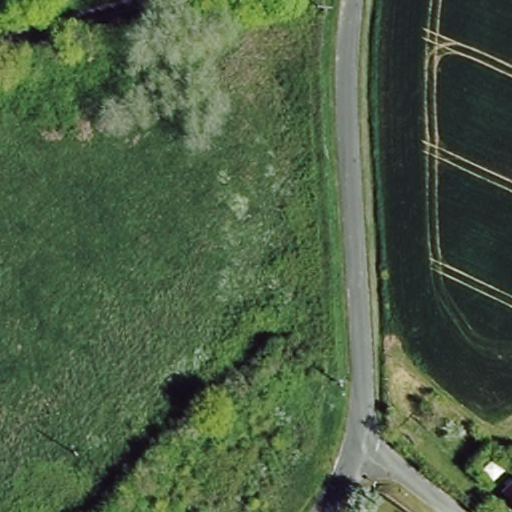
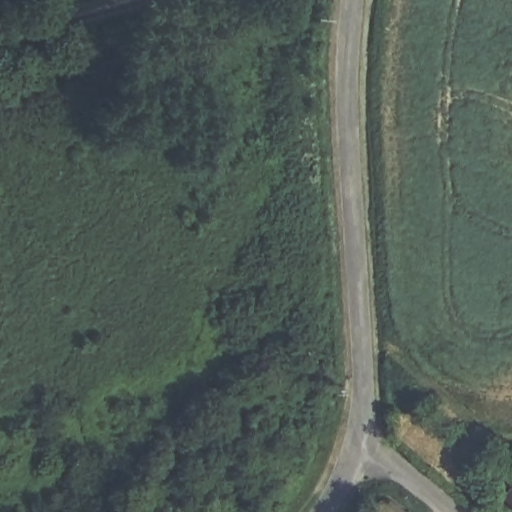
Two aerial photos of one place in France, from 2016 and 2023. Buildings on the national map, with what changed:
unchanged [(512,482),(512,503),(502,492),(512,482)]

